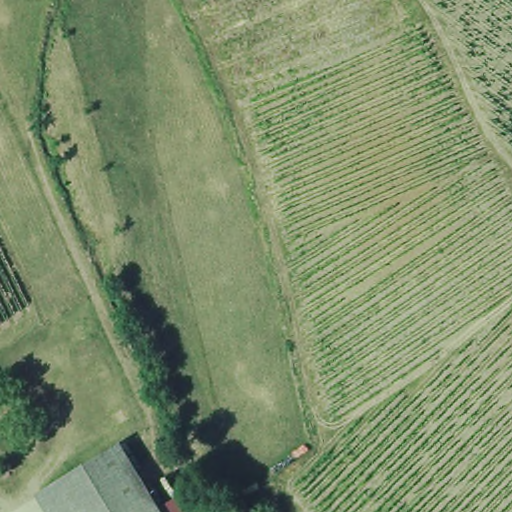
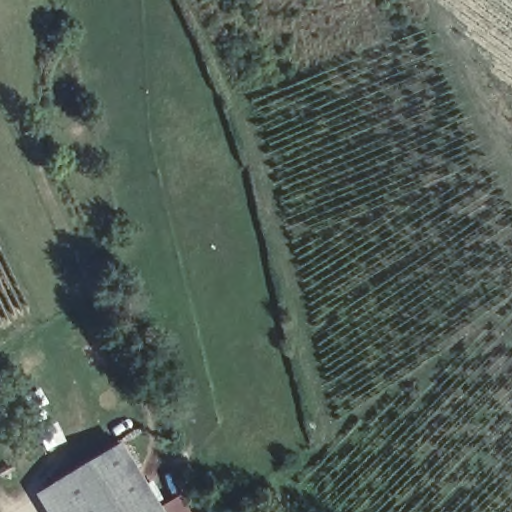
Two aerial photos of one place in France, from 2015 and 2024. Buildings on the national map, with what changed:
unchanged [(157,512),(42,512),(36,501),(117,448),(157,512)]

